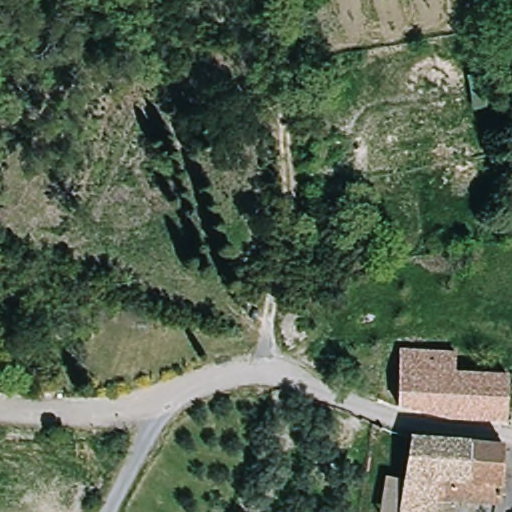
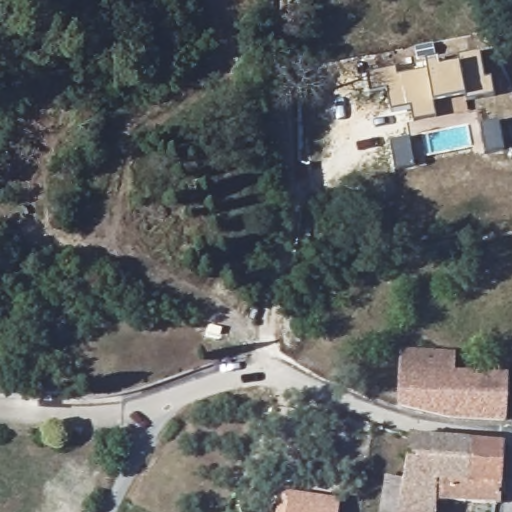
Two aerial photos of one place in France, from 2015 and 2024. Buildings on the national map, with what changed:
new [(465,96),(433,103),(437,116),(415,120),(412,105),(392,110),(387,89),(370,91),(366,73),(395,67),(397,75),(429,71),(426,61),(437,60),(439,69),(461,65),(459,57),(479,54),(485,80),(492,79),(495,95),(466,101),(465,96)]
unchanged [(258,318),(249,313),(254,302),(263,307),(258,318)]
unchanged [(453,353),(452,373),(504,376),(502,421),(445,420),(393,405),(398,350),(453,353)]
unchanged [(496,502),(433,500),(434,512),(381,512),(385,478),(403,480),(409,437),(500,445),(496,502)]
new [(339,512),(277,512),(281,490),(341,498),(339,512)]

